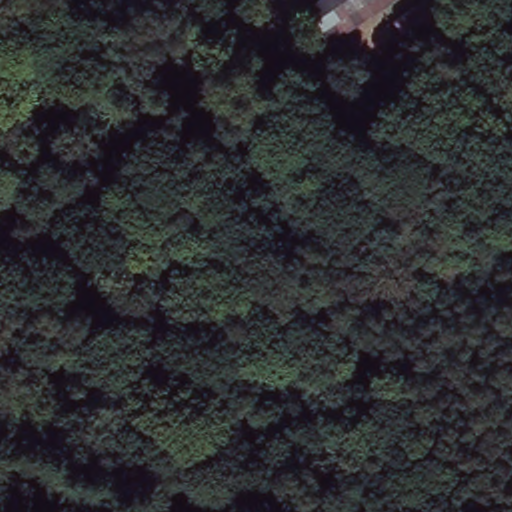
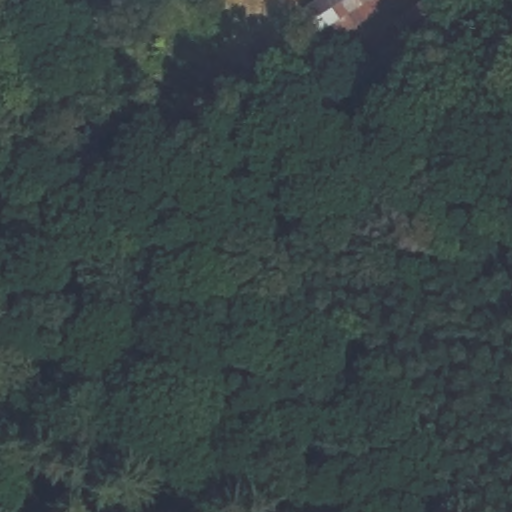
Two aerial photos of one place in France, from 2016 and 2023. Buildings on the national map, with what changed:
unchanged [(395,0),(324,44),(303,7),(314,0),(395,0)]

